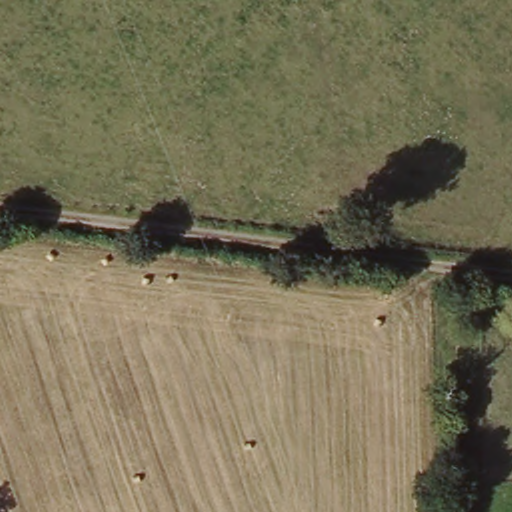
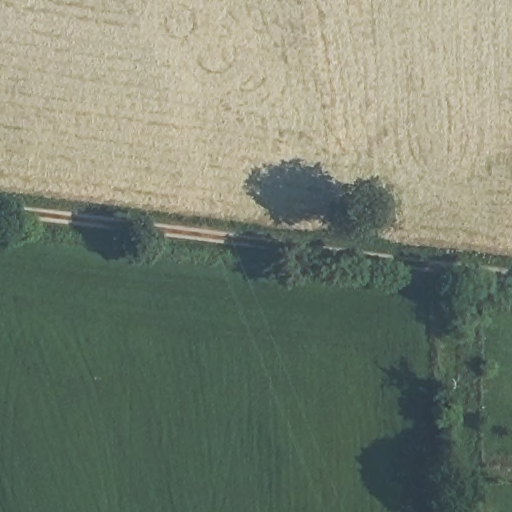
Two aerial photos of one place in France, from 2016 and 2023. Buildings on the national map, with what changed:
[]

